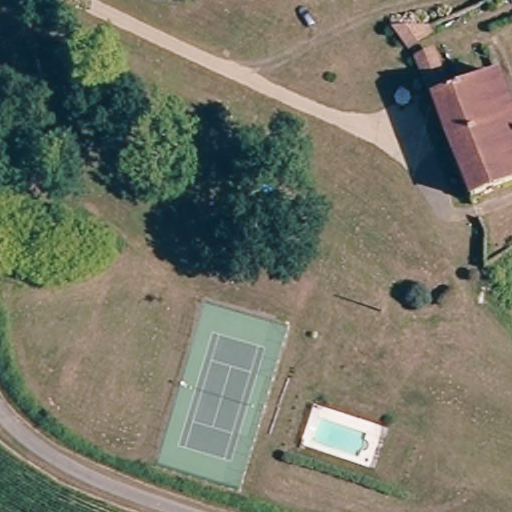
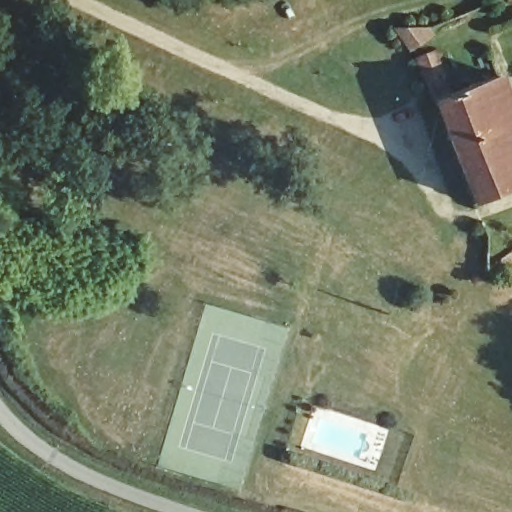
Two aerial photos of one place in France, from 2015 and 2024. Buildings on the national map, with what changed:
unchanged [(424,30),(414,55),(393,33),(424,30)]
unchanged [(491,75),(512,123),(512,184),(472,199),(421,74),(434,69),(444,95),(491,75)]

